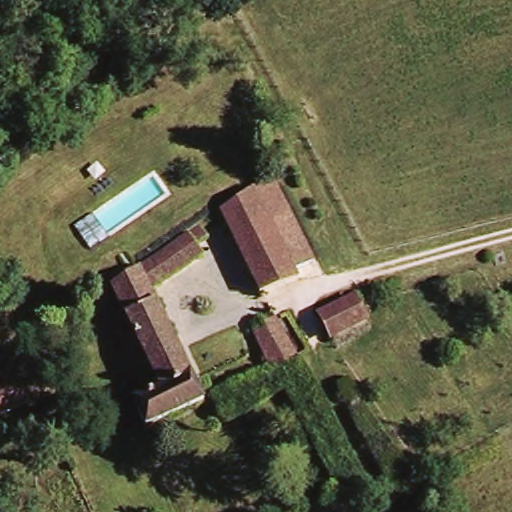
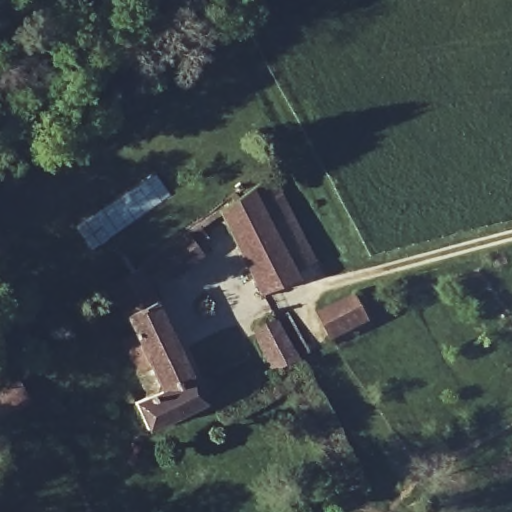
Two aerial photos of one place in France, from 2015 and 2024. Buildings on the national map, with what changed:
unchanged [(271,178),(312,262),(292,272),(295,281),(257,294),(219,213),(271,178)]
unchanged [(202,252),(148,289),(201,403),(144,430),(131,401),(157,389),(146,366),(130,373),(113,337),(129,328),(109,286),(187,229),(189,231),(197,225),(205,235),(195,243),(202,252)]
unchanged [(322,312),(359,295),(367,317),(331,335),(322,312)]
unchanged [(277,367),(257,326),(277,316),(297,357),(277,367)]
unchanged [(5,408),(27,390),(38,411),(17,427),(5,408)]

